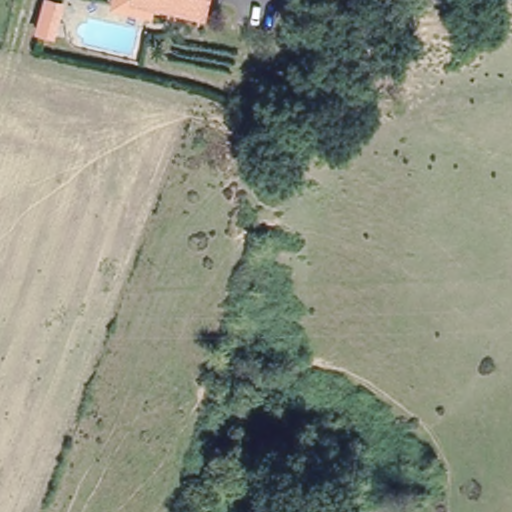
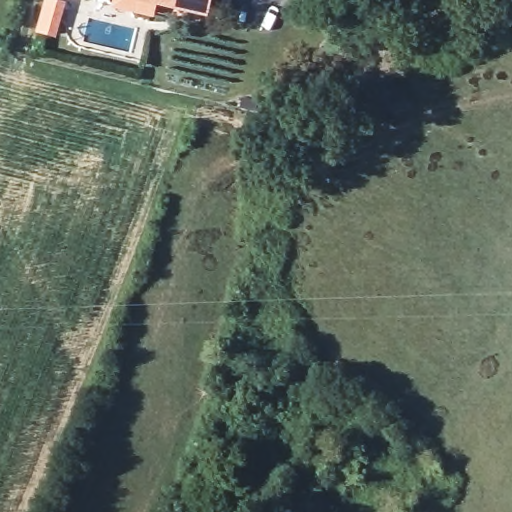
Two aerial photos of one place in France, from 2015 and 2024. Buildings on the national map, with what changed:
unchanged [(164,0),(162,7),(129,0),(164,0)]
unchanged [(195,0),(213,0),(212,5),(195,0)]

